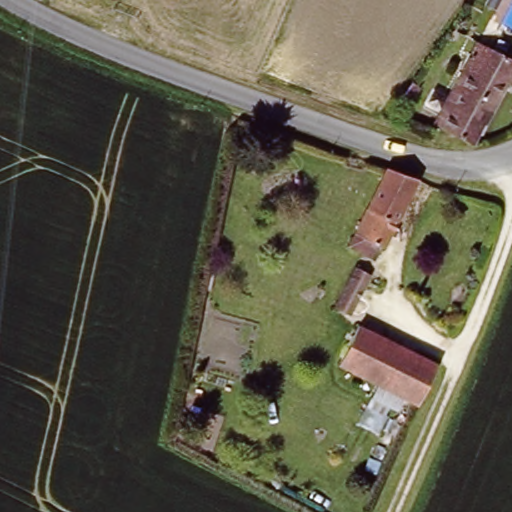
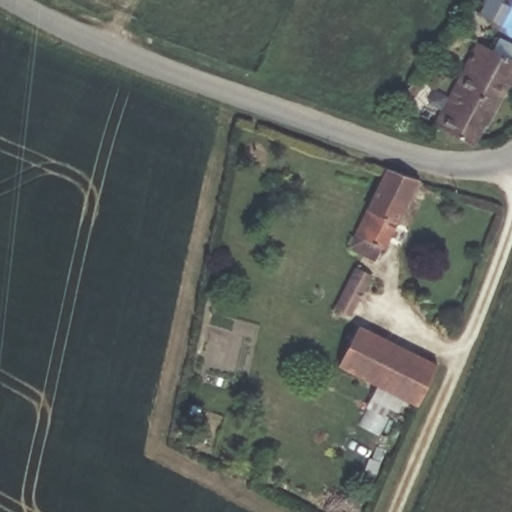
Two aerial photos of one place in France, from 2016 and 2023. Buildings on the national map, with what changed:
unchanged [(512,56),(512,64),(477,139),(460,132),(455,146),(439,140),(445,126),(439,122),(477,39),(512,56)]
unchanged [(390,167),(423,177),(389,252),(384,250),(380,260),(354,247),(390,167)]
unchanged [(355,266),(367,272),(342,323),(330,317),(355,266)]
unchanged [(401,346),(382,387),(340,367),(359,326),(401,346)]
unchanged [(435,363),(417,403),(382,387),(401,346),(435,363)]

